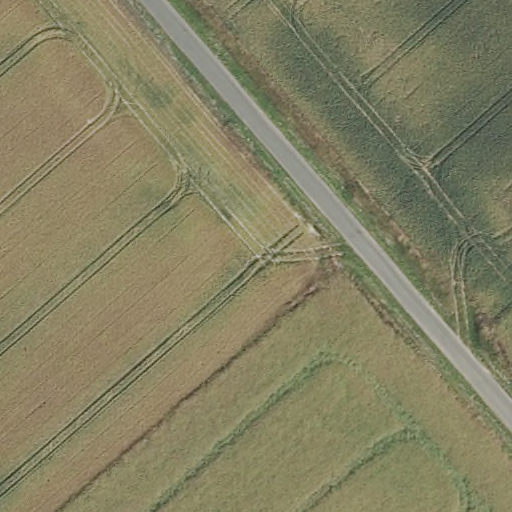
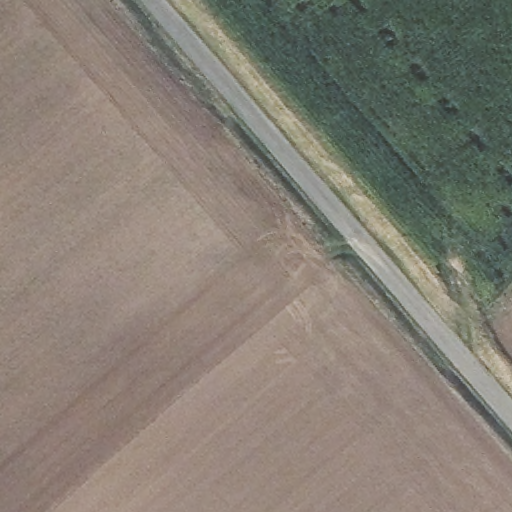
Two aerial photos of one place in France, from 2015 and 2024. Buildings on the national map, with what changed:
[]

